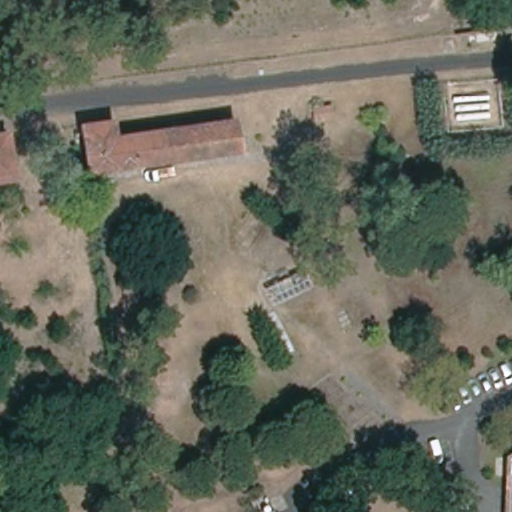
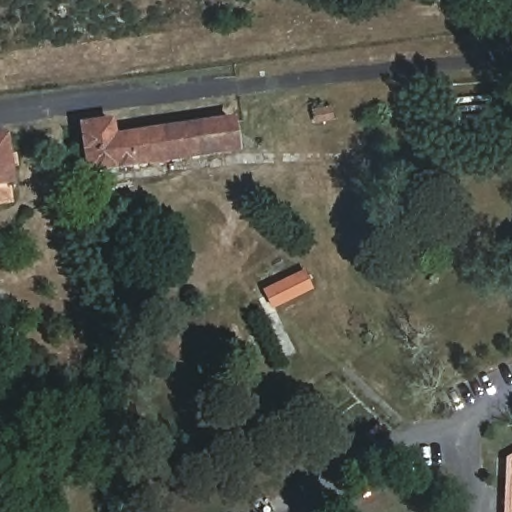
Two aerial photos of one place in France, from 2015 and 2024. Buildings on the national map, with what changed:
unchanged [(334,121),(315,124),(312,109),(332,106),(334,121)]
unchanged [(236,151),(89,173),(82,126),(112,122),(115,138),(232,121),(236,151)]
unchanged [(12,184),(0,186),(0,139),(5,139),(12,184)]
unchanged [(272,307),(265,289),(303,271),(311,288),(272,307)]
unchanged [(295,353),(282,360),(262,320),(277,313),(295,353)]
unchanged [(510,462),(512,461),(512,512),(508,512),(510,462)]

